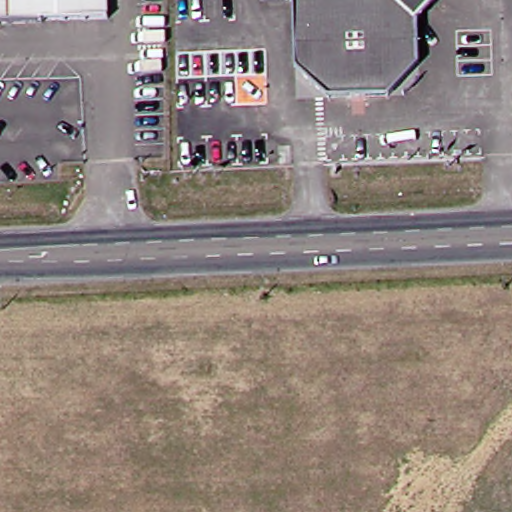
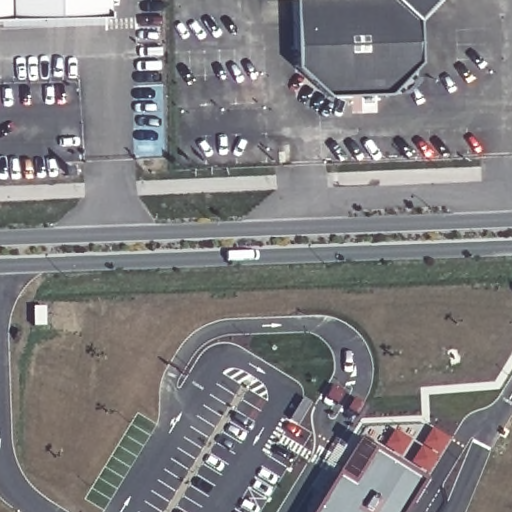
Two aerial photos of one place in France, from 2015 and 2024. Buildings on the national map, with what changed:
unchanged [(109,20),(44,22),(44,24),(0,25),(0,0),(109,0),(109,20)]
unchanged [(402,111),(386,98),(323,100),(290,73),(288,3),(258,4),(258,0),(432,0),(410,23),(412,67),(429,80),(402,111)]
new [(316,512),(360,440),(425,482),(406,512),(316,512)]

